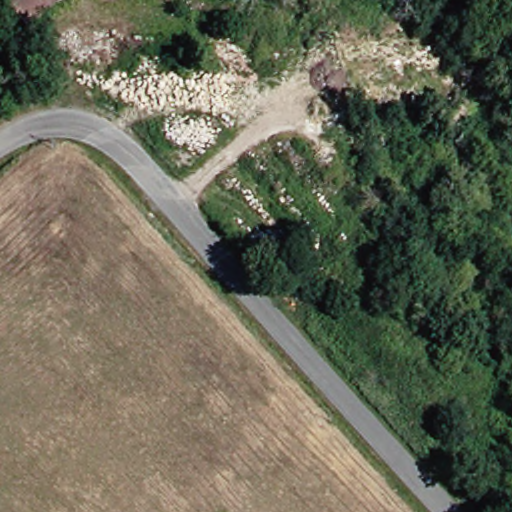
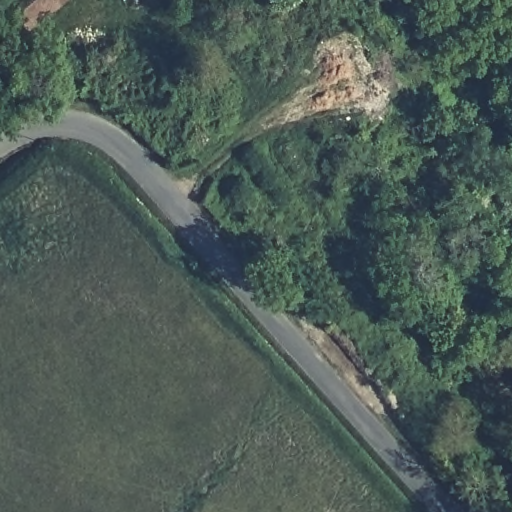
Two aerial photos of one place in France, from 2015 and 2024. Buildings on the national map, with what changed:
unchanged [(0,1),(0,0),(64,0),(24,34),(0,1)]

